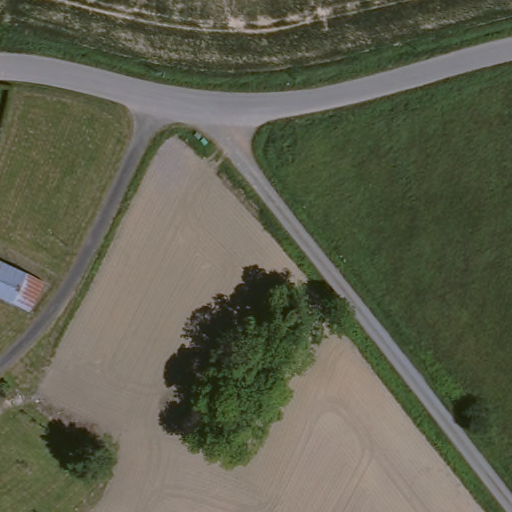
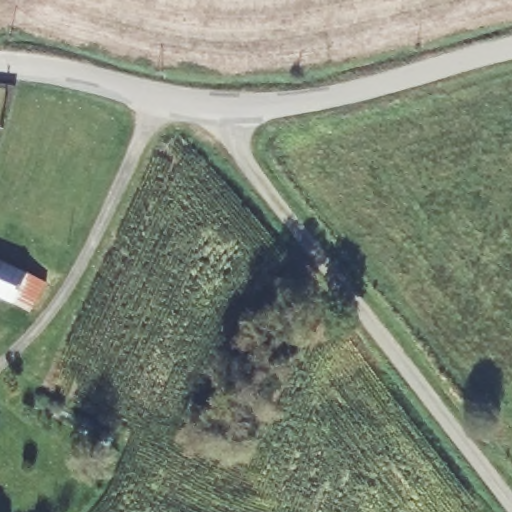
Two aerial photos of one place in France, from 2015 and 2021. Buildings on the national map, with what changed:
unchanged [(40,303),(18,292),(0,283),(0,254),(30,269),(55,282),(40,303)]

